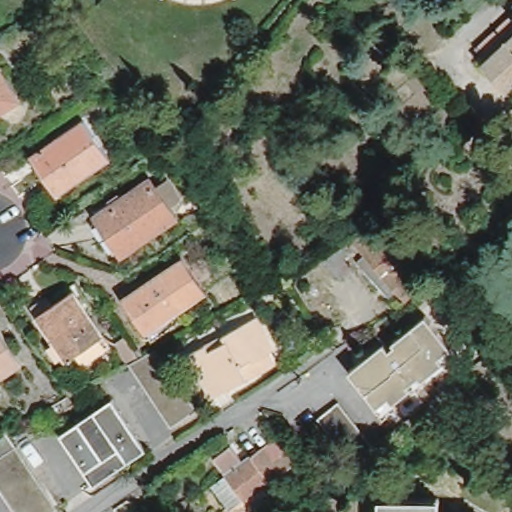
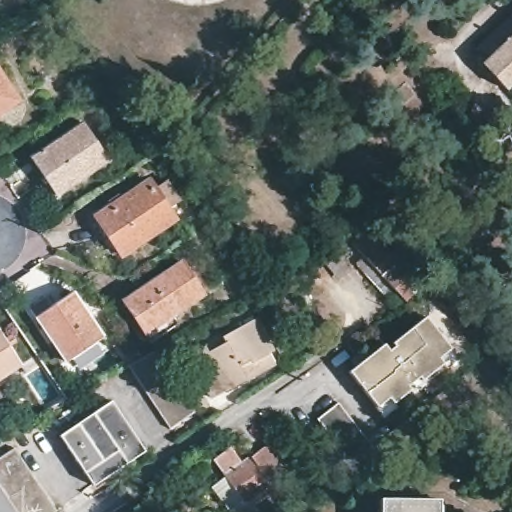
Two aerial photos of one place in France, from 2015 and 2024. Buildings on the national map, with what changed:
unchanged [(485,70),(490,66),(479,54),(512,25),(512,91),(509,94),(485,70)]
unchanged [(25,101),(0,117),(0,63),(25,101)]
unchanged [(108,159),(57,195),(31,159),(83,122),(108,159)]
unchanged [(173,175),(187,196),(171,207),(179,218),(125,255),(100,217),(153,181),(157,186),(173,175)]
unchanged [(373,281),(381,273),(351,241),(368,226),(391,252),(392,250),(423,283),(405,300),(397,307),(373,281)]
unchanged [(352,252),(337,264),(326,251),(342,240),(352,252)]
unchanged [(150,342),(147,337),(139,342),(127,325),(134,320),(142,332),(145,332),(123,299),(181,261),(202,293),(168,316),(175,325),(150,342)]
unchanged [(352,267),(346,272),(342,266),(347,261),(352,267)]
unchanged [(103,337),(67,362),(35,317),(72,292),(103,337)]
unchanged [(387,408),(383,412),(375,402),(376,402),(348,366),(383,338),(389,345),(394,341),(392,337),(425,311),(451,343),(459,351),(446,362),(443,358),(422,375),(424,379),(413,387),(410,384),(393,398),(396,402),(387,408)]
unchanged [(218,397),(192,352),(208,343),(225,334),(226,335),(259,316),(284,360),(218,397)]
unchanged [(25,364),(0,381),(0,326),(25,364)]
unchanged [(201,403),(194,407),(195,410),(169,428),(125,364),(138,357),(154,348),(190,402),(196,397),(201,403)]
unchanged [(148,450),(98,485),(64,433),(116,398),(148,450)]
unchanged [(372,445),(351,462),(318,418),(338,402),(372,445)]
unchanged [(212,458),(229,447),(241,462),(281,432),(292,446),(289,447),(298,460),(273,478),(284,493),(272,502),(273,503),(262,512),(231,512),(228,509),(210,484),(223,474),(212,458)]
unchanged [(12,447),(55,511),(53,512),(15,512),(0,489),(0,455),(12,447)]
unchanged [(185,499),(173,507),(159,486),(171,477),(185,499)]
unchanged [(0,512),(0,489),(15,512),(0,512)]
unchanged [(441,512),(381,512),(381,497),(441,500),(441,512)]

